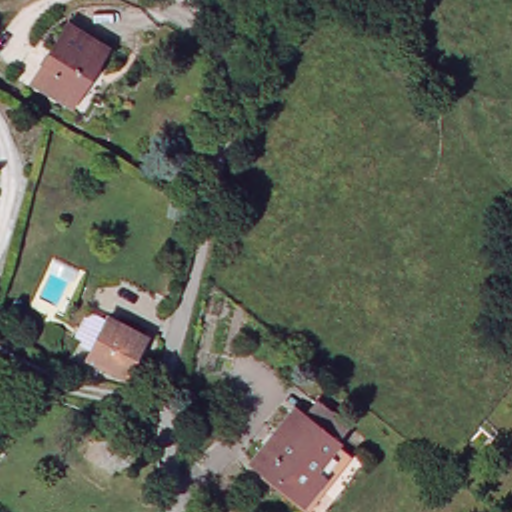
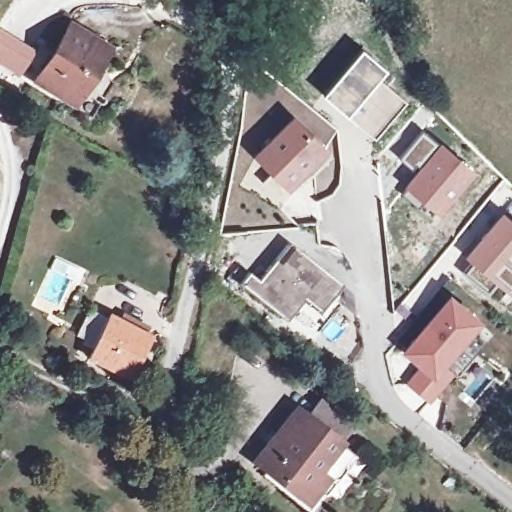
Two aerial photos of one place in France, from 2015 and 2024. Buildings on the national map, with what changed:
unchanged [(86,72),(70,99),(37,80),(71,24),(108,46),(92,74),(86,72)]
new [(362,46),(387,67),(379,76),(345,114),(322,94),(362,46)]
new [(379,76),(406,99),(373,137),(345,114),(379,76)]
new [(314,175),(306,168),(289,185),(259,155),(295,117),(325,147),(334,155),(314,175)]
new [(474,166),(434,213),(402,187),(414,170),(399,156),(422,129),(437,141),(439,139),(474,166)]
new [(289,185),(287,186),(279,205),(242,185),(259,155),(289,185)]
new [(501,214),(512,223),(512,284),(507,290),(467,255),(501,214)]
new [(249,273),(259,280),(289,242),(340,285),(319,312),(302,299),(285,320),(241,284),(249,273)]
new [(452,298),(477,320),(442,362),(454,372),(430,400),(410,383),(425,363),(409,350),(452,298)]
unchanged [(91,357),(112,314),(151,334),(130,376),(91,357)]
unchanged [(265,470),(270,464),(258,455),(270,440),(272,441),(301,406),(309,411),(322,396),(350,419),(337,435),(357,451),(331,484),(313,508),(265,470)]

